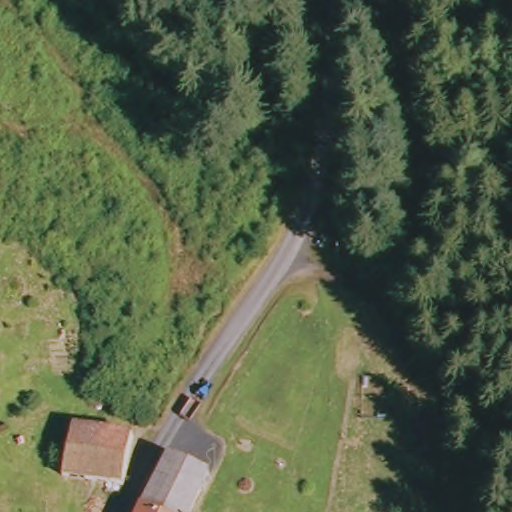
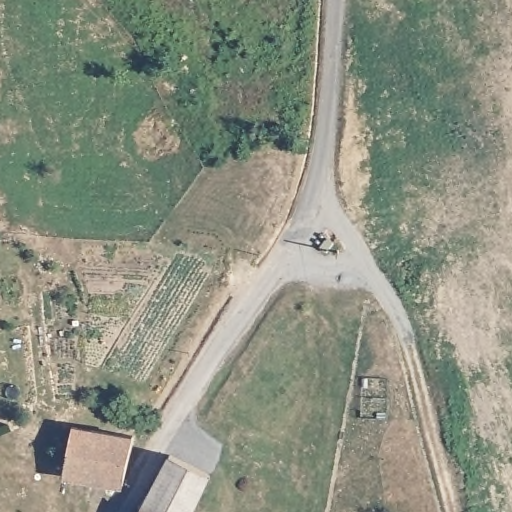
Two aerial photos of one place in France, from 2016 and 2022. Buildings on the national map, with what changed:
unchanged [(138,432),(133,478),(72,471),(79,421),(138,432)]
unchanged [(147,507),(174,454),(213,472),(196,512),(144,512),(147,507)]

